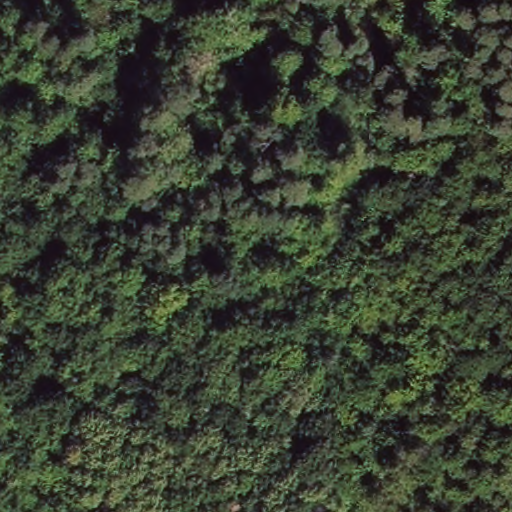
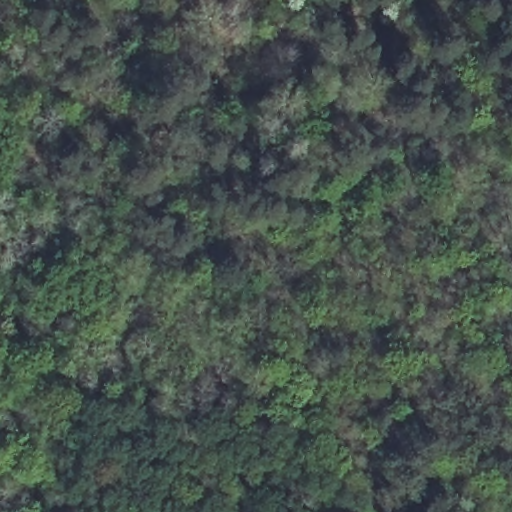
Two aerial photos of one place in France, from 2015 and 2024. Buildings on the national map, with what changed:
unchanged [(503,242),(512,230),(512,250),(503,242)]

